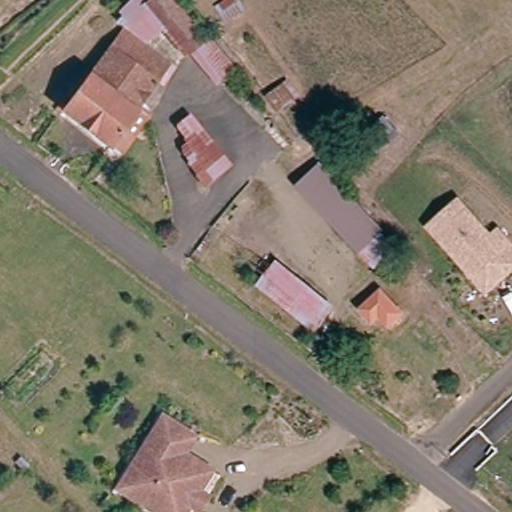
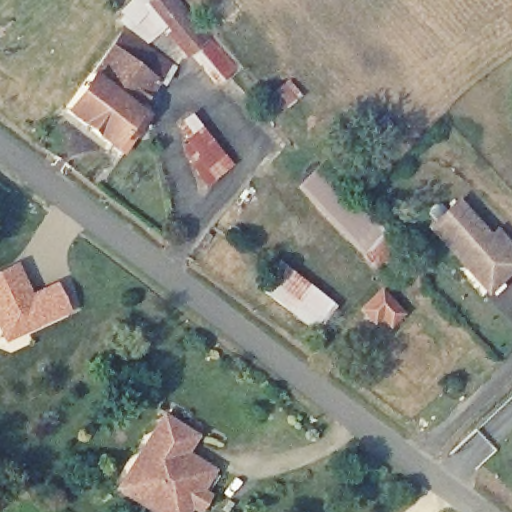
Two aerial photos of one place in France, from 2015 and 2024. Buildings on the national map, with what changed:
unchanged [(135,0),(151,0),(168,24),(162,30),(161,28),(151,37),(153,38),(146,44),(126,30),(130,25),(122,16),(135,0)]
unchanged [(212,85),(168,24),(151,0),(152,0),(184,0),(233,69),(212,85)]
unchanged [(141,109),(117,144),(69,111),(126,30),(146,44),(173,62),(141,109)]
unchanged [(235,167),(212,187),(177,147),(185,140),(175,129),(191,116),(235,167)]
unchanged [(326,170),(392,242),(372,261),(296,179),(313,164),(317,160),(326,170)]
unchanged [(473,279),(432,227),(462,203),(492,242),(500,236),(512,251),(512,275),(508,278),(486,295),(473,279)]
unchanged [(265,260),(272,265),(276,259),(337,305),(316,332),(255,279),(265,260)]
new [(0,274),(16,267),(28,294),(57,283),(71,313),(4,343),(0,334),(0,274)]
unchanged [(397,318),(385,329),(364,307),(377,296),(397,318)]
unchanged [(208,500),(201,512),(192,512),(191,512),(149,512),(115,492),(161,417),(195,438),(184,455),(205,468),(214,474),(201,496),(208,500)]

